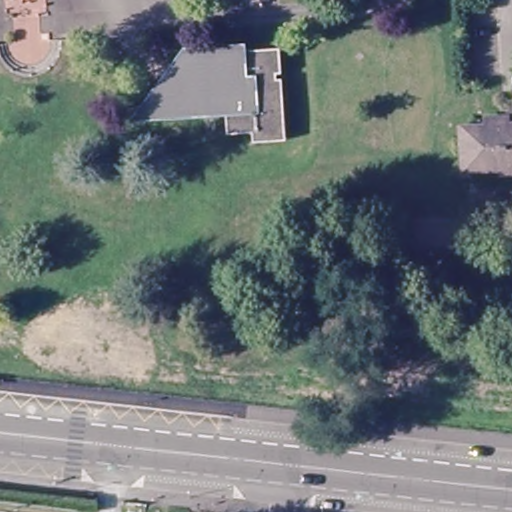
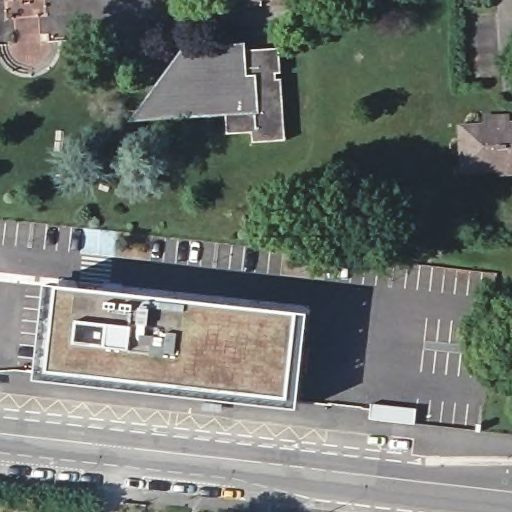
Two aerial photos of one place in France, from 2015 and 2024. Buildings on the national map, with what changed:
unchanged [(253,6),(253,0),(272,0),(272,5),(253,6)]
unchanged [(131,126),(177,61),(176,49),(220,45),(221,52),(221,56),(190,59),(152,113),(205,107),(206,114),(207,117),(144,125),(131,126)]
unchanged [(280,46),(289,139),(257,142),(256,132),(232,135),(230,112),(206,114),(205,107),(152,113),(190,59),(221,56),(221,52),(280,46)]
unchanged [(502,162),(464,165),(462,123),(485,122),(485,114),(507,112),(508,126),(512,125),(512,167),(503,167),(502,162)]
new [(36,384),(47,288),(309,317),(299,412),(36,384)]

